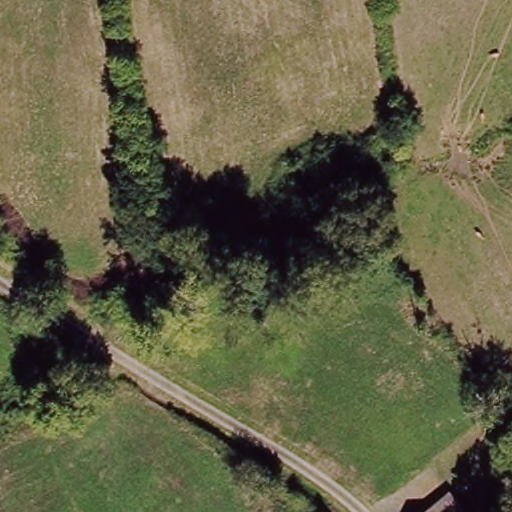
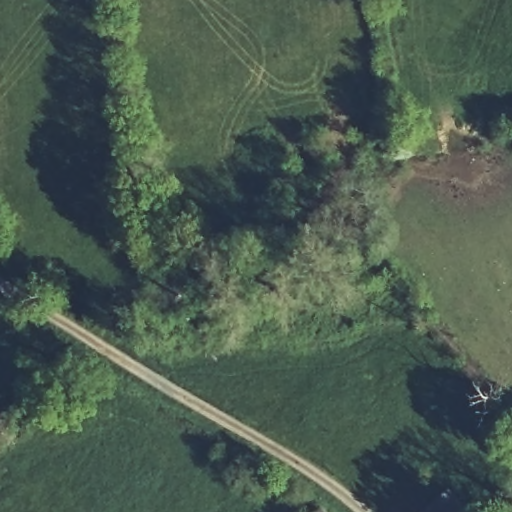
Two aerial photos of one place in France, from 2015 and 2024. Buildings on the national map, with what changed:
unchanged [(462,512),(415,512),(445,489),(462,512)]
unchanged [(321,512),(318,512),(320,510),(321,512)]

